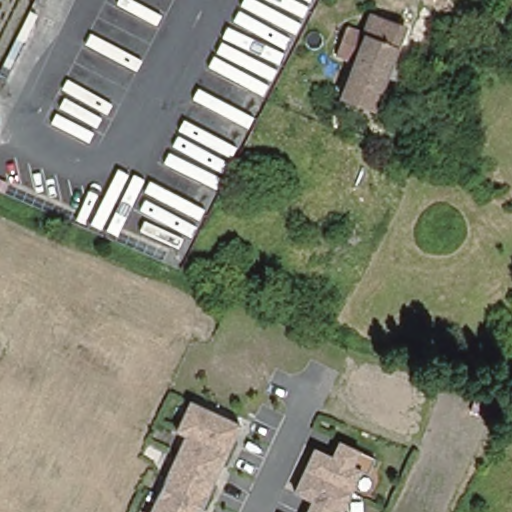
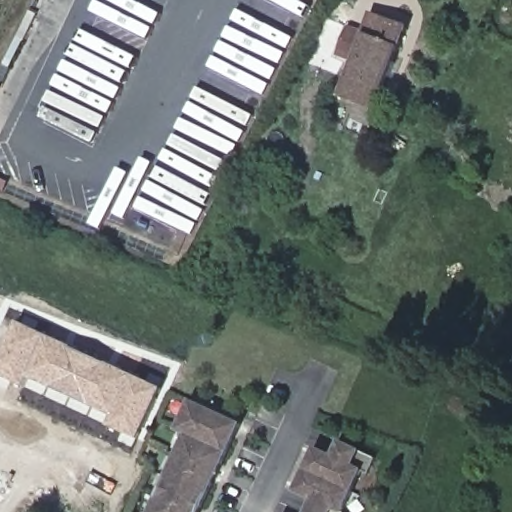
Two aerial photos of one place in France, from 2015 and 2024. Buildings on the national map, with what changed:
unchanged [(365,34),(372,17),(405,30),(373,109),(341,95),(354,62),(337,54),(348,28),(365,34)]
new [(140,439),(108,427),(113,416),(29,377),(24,388),(0,377),(0,361),(18,321),(163,388),(140,439)]
unchanged [(204,512),(153,512),(187,436),(180,432),(195,402),(244,425),(204,512)]
unchanged [(379,458),(372,476),(366,472),(347,512),(308,512),(314,501),(298,492),(318,449),(336,455),(342,442),(363,451),(379,458)]

